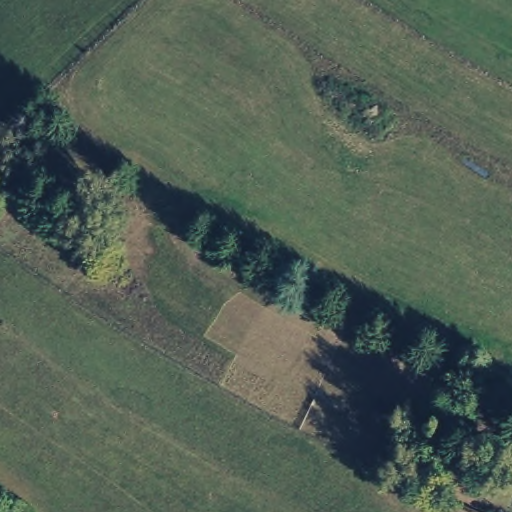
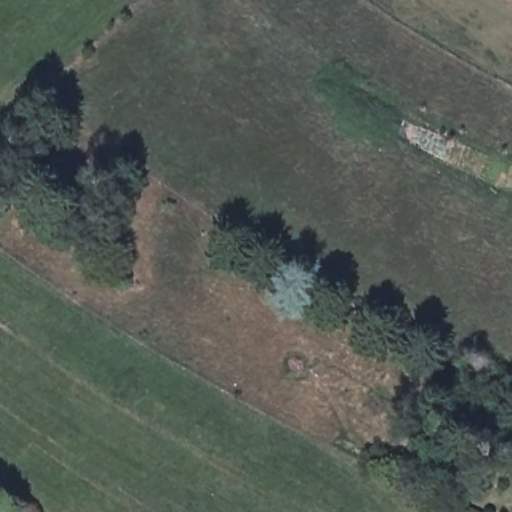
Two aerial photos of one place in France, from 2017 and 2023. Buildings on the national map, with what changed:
unchanged [(502,396),(492,419),(471,411),(483,387),(502,396)]

